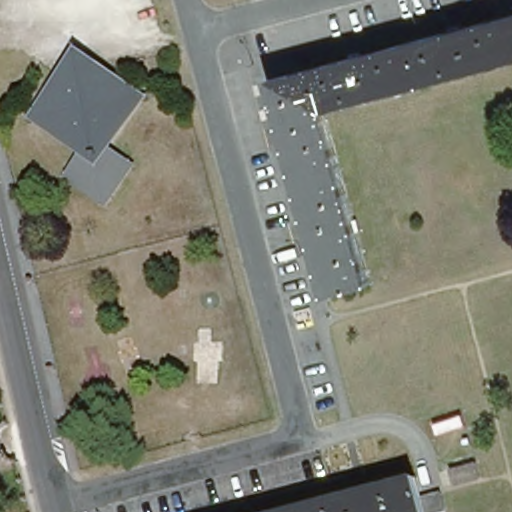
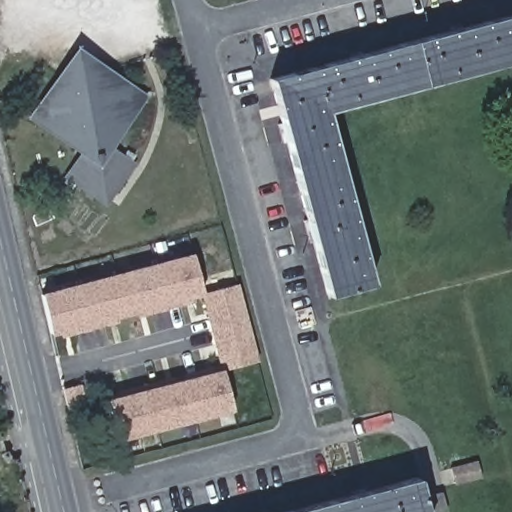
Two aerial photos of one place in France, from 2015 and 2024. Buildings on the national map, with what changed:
unchanged [(326,106),(369,280),(326,293),(271,75),(512,10),(512,57),(326,106)]
unchanged [(136,97),(104,146),(131,166),(102,205),(62,176),(79,151),(30,117),(73,55),(136,97)]
new [(66,328),(55,331),(46,293),(197,254),(207,291),(196,294),(197,299),(185,302),(156,310),(143,313),(141,308),(120,315),(121,320),(109,322),(80,330),(68,333),(66,328)]
new [(241,282),(261,359),(226,368),(207,291),(241,282)]
new [(135,386),(164,379),(177,375),(178,380),(189,377),(188,372),(202,369),(214,366),(216,370),(226,368),(236,406),(123,436),(113,397),(124,395),(122,390),(135,386)]
unchanged [(456,486),(451,470),(478,465),(481,480),(456,486)]
unchanged [(416,499),(436,495),(440,512),(285,512),(411,479),(416,499)]

